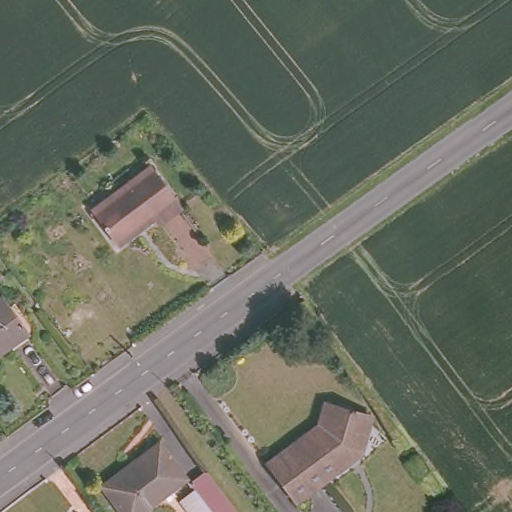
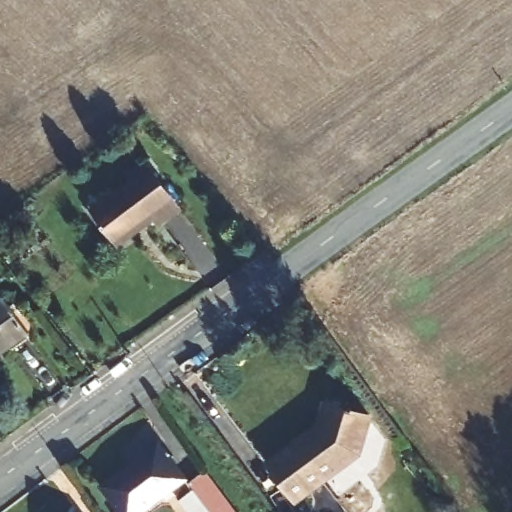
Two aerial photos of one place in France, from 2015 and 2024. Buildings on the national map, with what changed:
unchanged [(153,170),(179,211),(164,224),(160,221),(133,240),(105,202),(153,170)]
unchanged [(4,295),(28,326),(0,345),(0,297),(4,295)]
unchanged [(333,428),(340,406),(374,417),(363,455),(304,501),(278,471),(333,428)]
unchanged [(183,480),(169,489),(137,512),(123,512),(100,481),(154,441),(174,468),(183,480)]
unchanged [(218,488),(236,512),(210,512),(192,486),(210,478),(218,488)]

